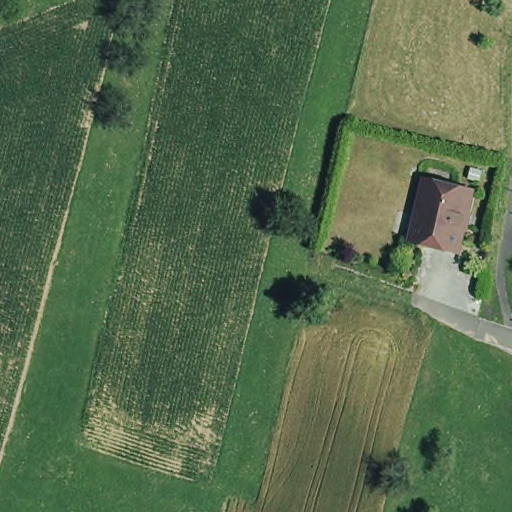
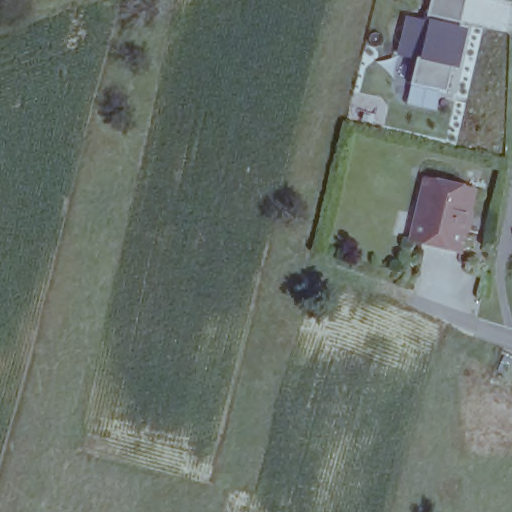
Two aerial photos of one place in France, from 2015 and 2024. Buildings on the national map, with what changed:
new [(452,69),(445,94),(411,85),(416,62),(395,56),(405,16),(427,20),(431,0),(466,0),(460,28),(467,30),(459,71),(452,69)]
unchanged [(419,221),(427,180),(441,184),(475,191),(462,252),(427,244),(414,241),(419,221)]

